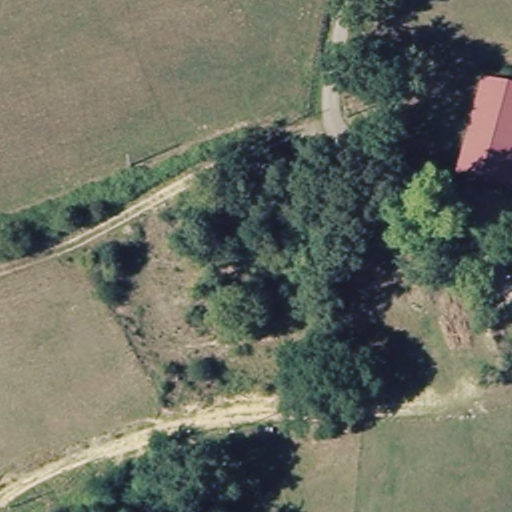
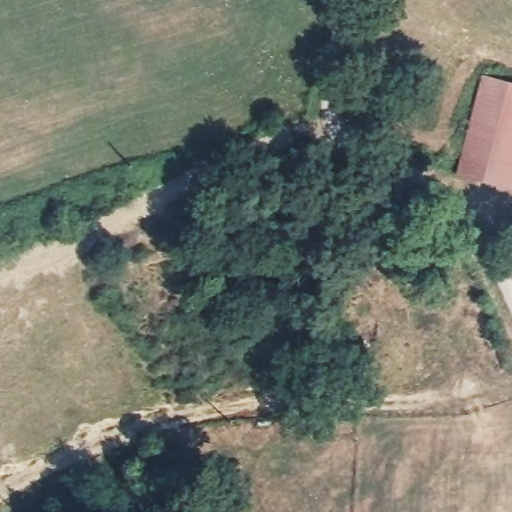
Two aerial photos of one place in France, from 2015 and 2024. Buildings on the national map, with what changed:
unchanged [(495,80),(512,84),(512,187),(509,186),(467,176),(486,99),(491,80),(492,79),(495,80)]

